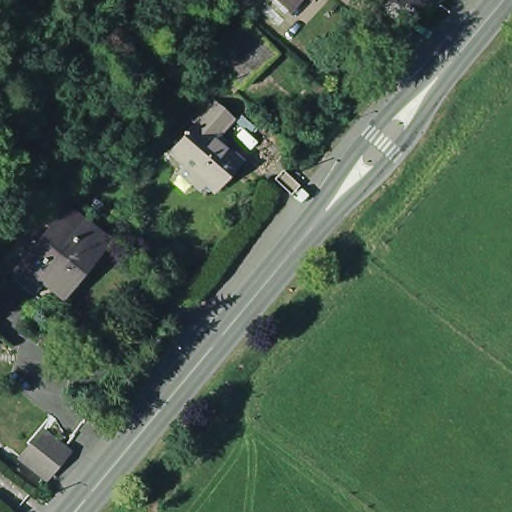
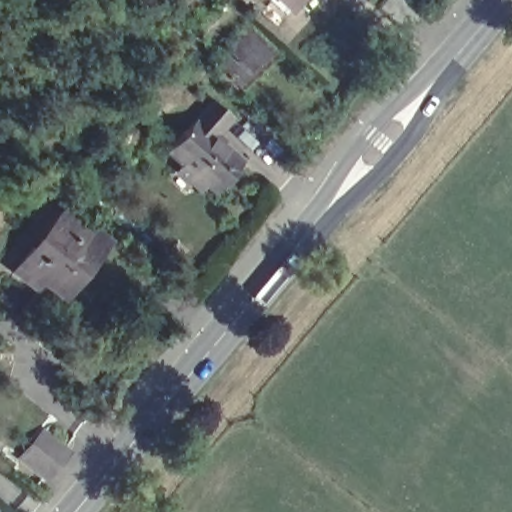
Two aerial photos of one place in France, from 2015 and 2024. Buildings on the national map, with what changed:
unchanged [(288,10),(277,0),(307,0),(305,4),(295,15),(288,10)]
unchanged [(408,26),(380,7),(384,0),(412,0),(423,8),(422,10),(408,26)]
unchanged [(220,62),(227,55),(230,51),(226,46),(248,26),(275,50),(262,63),(267,68),(260,73),(256,68),(248,76),(242,84),(220,62)]
unchanged [(181,185),(187,176),(172,165),(197,134),(192,131),(210,107),(234,125),(217,148),(242,166),(217,199),(210,194),(205,201),(181,185)]
unchanged [(53,191),(45,184),(52,175),(60,182),(53,191)]
unchanged [(11,280),(18,272),(35,252),(37,254),(70,215),(108,246),(93,263),(90,261),(65,291),(47,277),(37,289),(30,296),(11,280)]
unchanged [(20,457),(32,442),(40,433),(64,452),(57,462),(45,476),(20,457)]

